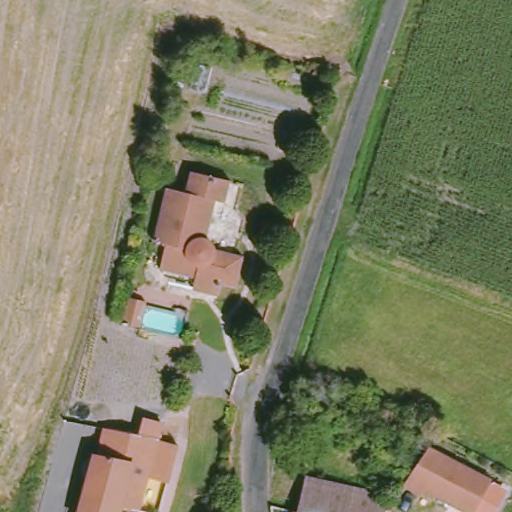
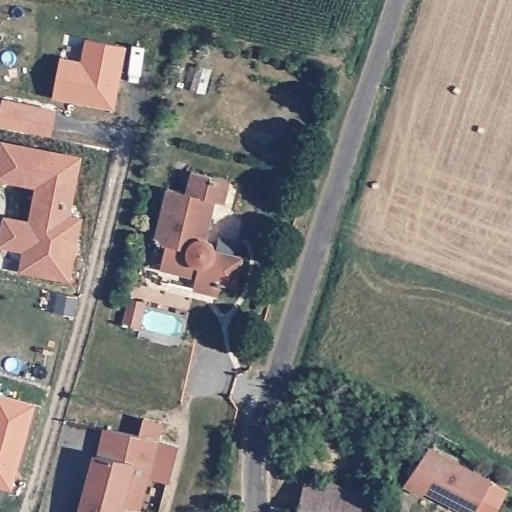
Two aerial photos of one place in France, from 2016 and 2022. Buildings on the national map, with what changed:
new [(114,110),(52,101),(58,58),(81,61),(84,39),(128,48),(114,110)]
new [(0,130),(0,104),(2,98),(55,112),(50,139),(0,130)]
new [(84,219),(71,286),(18,274),(22,254),(0,250),(0,223),(2,218),(27,223),(34,191),(0,184),(0,146),(1,141),(82,158),(70,217),(84,219)]
unchanged [(213,250),(239,256),(232,287),(217,284),(213,295),(189,288),(192,276),(157,267),(163,243),(152,240),(165,188),(183,192),(189,170),(227,179),(222,203),(215,202),(206,235),(213,250)]
new [(0,492),(0,396),(36,407),(11,496),(0,492)]
new [(168,482),(148,477),(153,466),(133,460),(97,448),(103,429),(138,436),(143,418),(163,424),(158,442),(178,446),(168,482)]
unchanged [(492,489),(475,512),(457,512),(457,508),(452,505),(449,509),(425,491),(420,496),(403,484),(416,465),(430,445),(492,489)]
unchanged [(97,448),(133,460),(153,466),(137,508),(118,502),(115,512),(75,512),(97,448)]
unchanged [(308,477),(332,482),(405,496),(393,512),(302,512),(308,477)]

